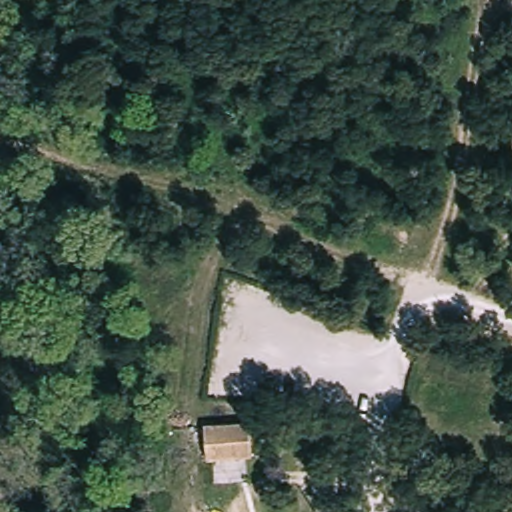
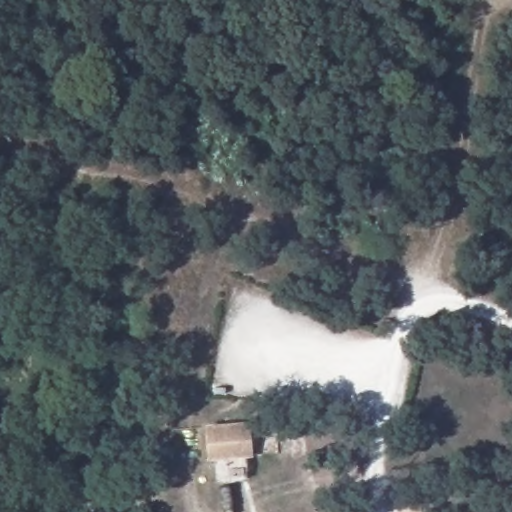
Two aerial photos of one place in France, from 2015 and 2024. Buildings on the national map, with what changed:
unchanged [(206,429),(267,423),(267,432),(251,434),(252,458),(209,462),(206,429)]

